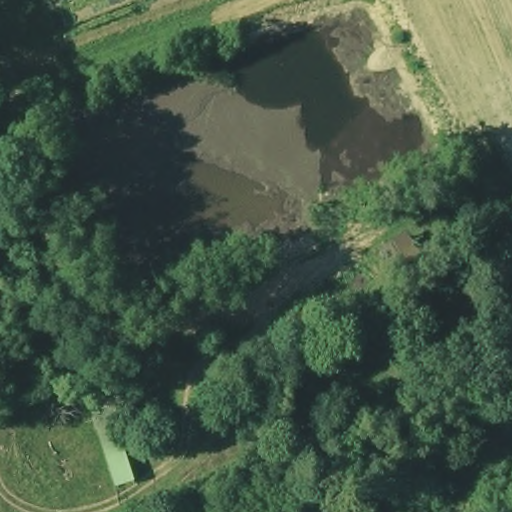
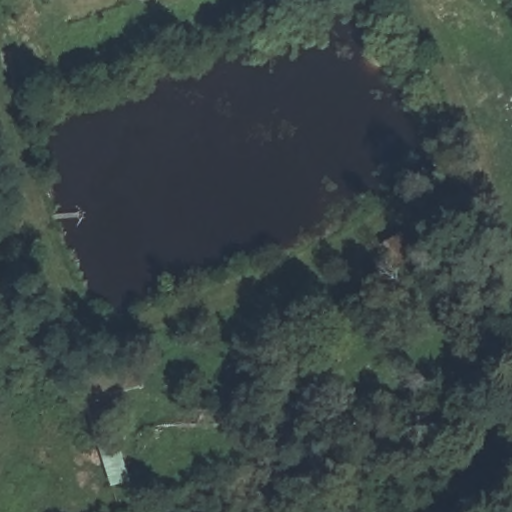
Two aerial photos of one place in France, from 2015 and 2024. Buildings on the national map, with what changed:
unchanged [(83,383),(121,375),(133,420),(91,433),(83,383)]

